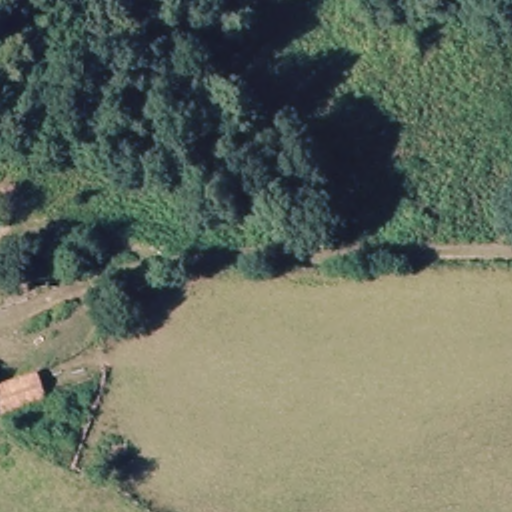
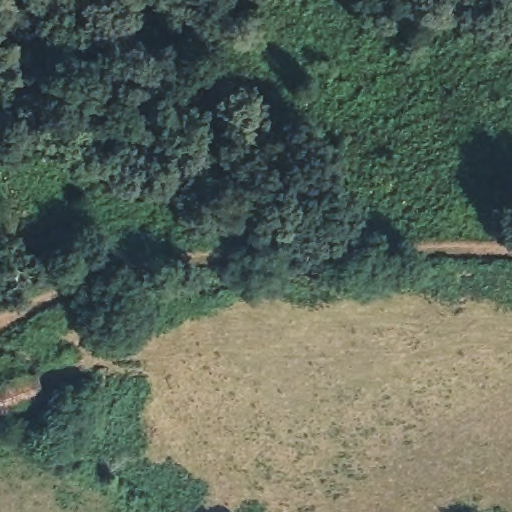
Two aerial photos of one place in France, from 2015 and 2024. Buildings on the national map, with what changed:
unchanged [(40,371),(51,397),(7,415),(0,403),(0,388),(40,371)]

